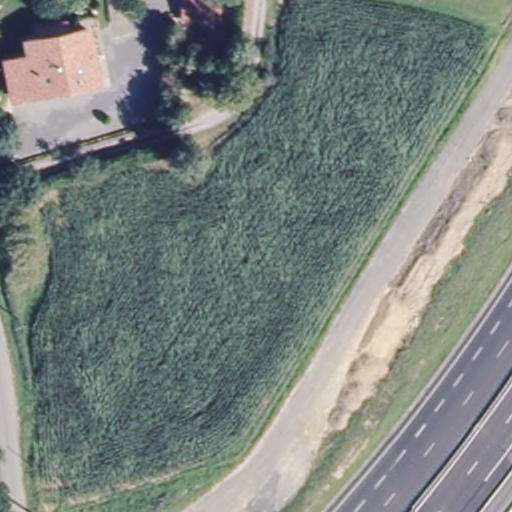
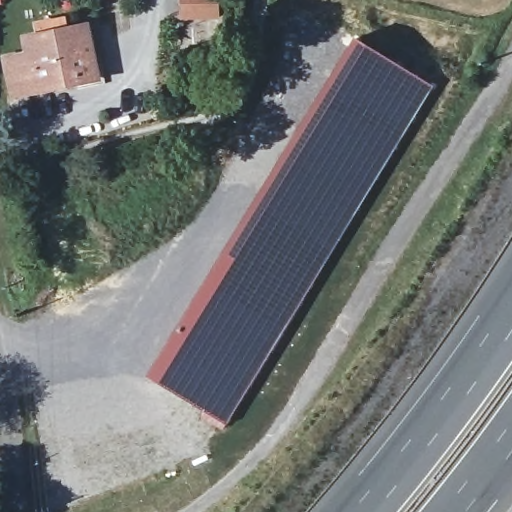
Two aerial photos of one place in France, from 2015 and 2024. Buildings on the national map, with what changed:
unchanged [(181,19),(180,0),(215,0),(215,18),(181,19)]
unchanged [(5,61),(28,56),(24,41),(86,28),(96,79),(12,97),(5,61)]
new [(254,204),(295,134),(357,37),(437,85),(228,425),(147,377),(254,204)]

